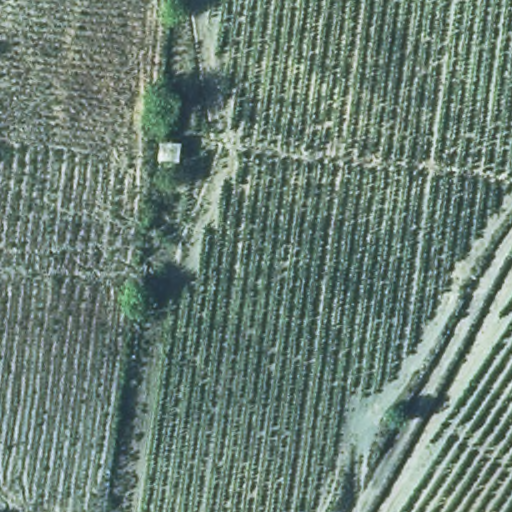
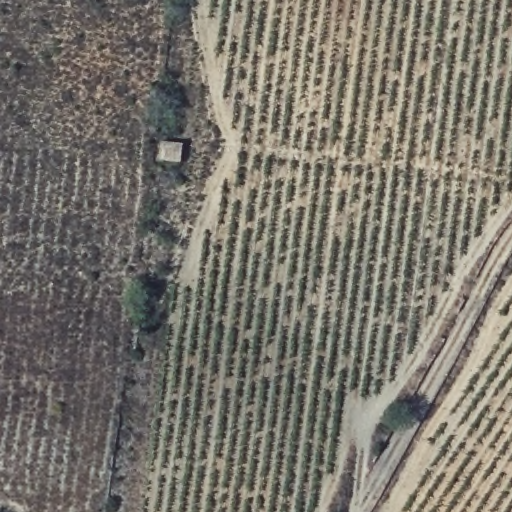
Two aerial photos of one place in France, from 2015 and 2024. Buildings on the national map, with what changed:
unchanged [(160,139),(185,140),(185,157),(159,158),(160,139)]

